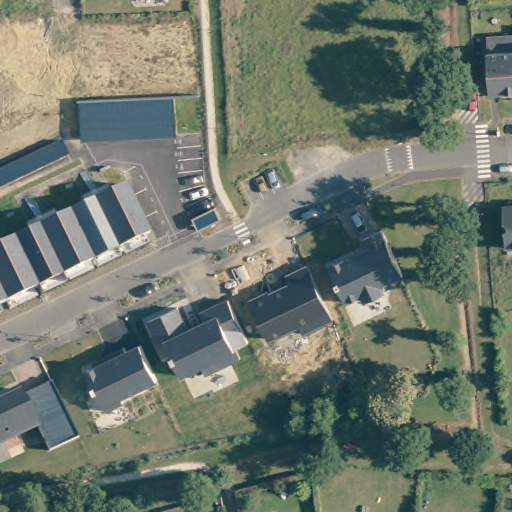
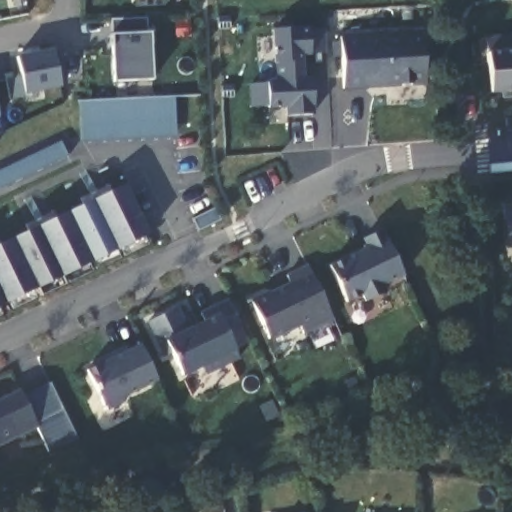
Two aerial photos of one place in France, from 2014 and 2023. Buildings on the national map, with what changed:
new [(112,80),(112,35),(112,19),(147,17),(149,32),(146,32),(151,79),(112,80)]
new [(310,27),(310,29),(324,28),(325,52),(311,54),(311,55),(302,55),(303,78),(312,77),(313,107),(310,107),(311,115),(285,116),(285,107),(267,108),(267,105),(250,106),(249,84),(267,82),(266,80),(276,80),(273,30),(310,27)]
new [(422,31),(425,86),(343,90),(340,35),(422,31)]
unchanged [(486,40),(512,38),(512,92),(490,94),(486,40)]
new [(22,94),(23,95),(12,98),(10,85),(22,81),(16,56),(53,49),(61,86),(22,94)]
unchanged [(81,101),(174,96),(177,137),(82,141),(81,101)]
unchanged [(0,191),(0,169),(61,140),(69,156),(0,191)]
unchanged [(2,243),(27,231),(25,224),(54,210),(57,216),(84,205),(81,197),(109,184),(113,190),(127,184),(149,234),(145,236),(148,245),(15,309),(10,301),(0,304),(0,238),(2,243)]
unchanged [(500,207),(505,207),(504,202),(512,202),(512,247),(504,248),(500,207)]
unchanged [(404,276),(385,284),(388,292),(365,302),(361,296),(346,305),(328,266),(367,247),(363,238),(382,230),(404,276)]
unchanged [(333,320),(305,335),(300,325),(268,341),(250,300),(292,282),(287,273),(307,265),(333,320)]
unchanged [(252,344),(236,352),(240,360),(208,375),(204,366),(181,377),(170,353),(164,356),(147,320),(180,308),(189,327),(205,320),(201,311),(229,300),(252,344)]
unchanged [(1,314),(0,314),(0,313),(1,314)]
unchanged [(157,380),(125,399),(127,401),(107,410),(88,370),(98,365),(95,360),(126,345),(128,350),(141,344),(157,380)]
unchanged [(19,390),(22,395),(50,381),(77,438),(49,451),(38,426),(0,446),(0,399),(19,390)]

